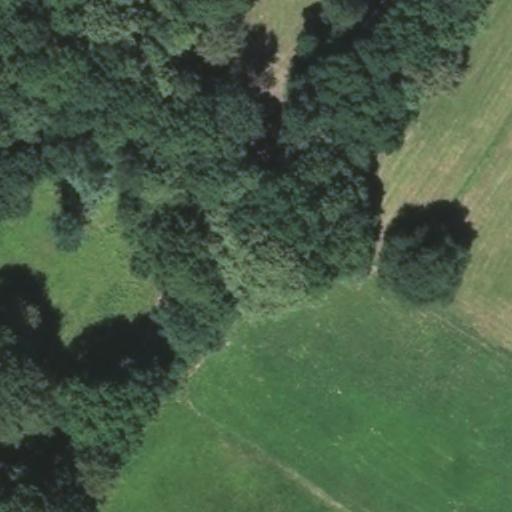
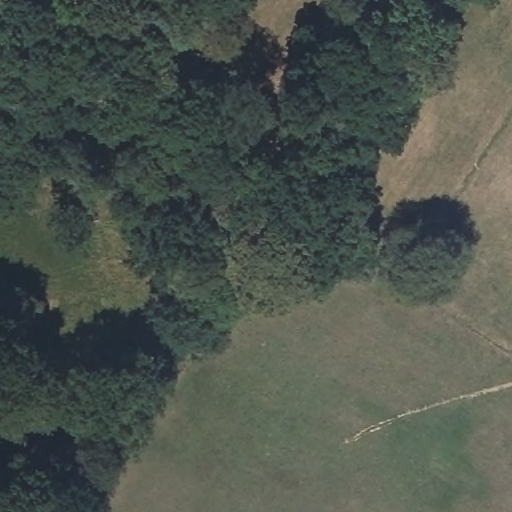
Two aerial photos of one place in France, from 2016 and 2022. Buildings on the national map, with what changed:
[]

